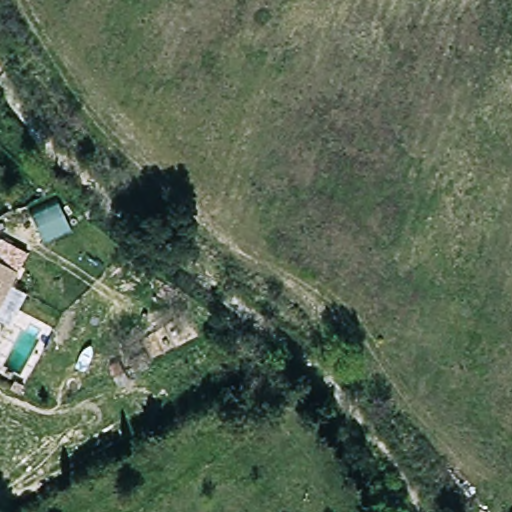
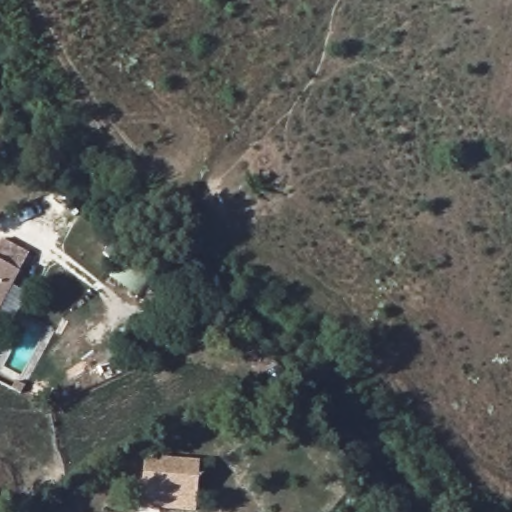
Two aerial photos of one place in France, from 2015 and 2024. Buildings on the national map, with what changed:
unchanged [(0,303),(0,263),(16,272),(0,303)]
new [(177,512),(141,509),(145,456),(200,460),(196,512),(177,512)]

